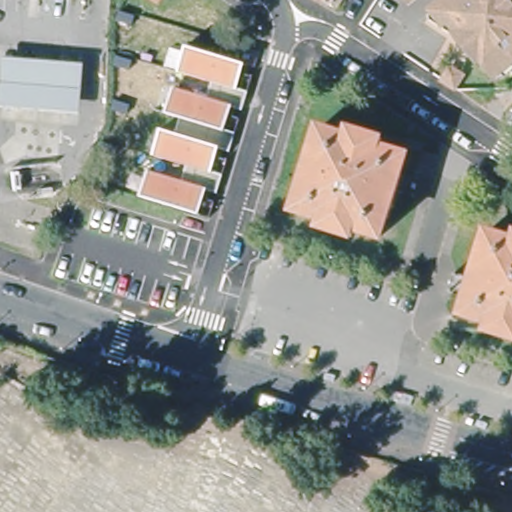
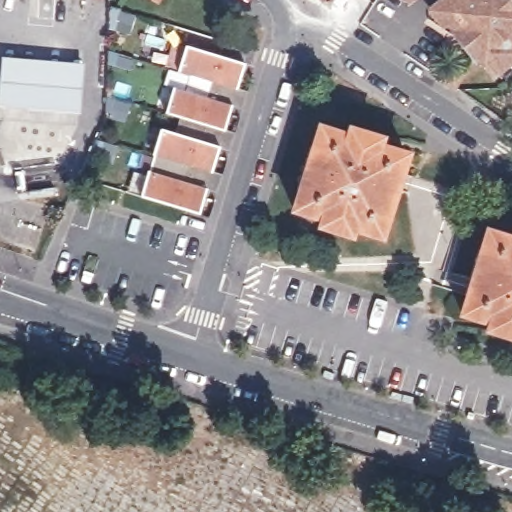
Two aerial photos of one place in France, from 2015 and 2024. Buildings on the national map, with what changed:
unchanged [(323,0),(330,0),(328,3),(323,0)]
unchanged [(403,0),(416,0),(408,6),(403,0)]
unchanged [(471,51),(467,54),(455,40),(459,37),(438,12),(452,0),(512,0),(512,59),(492,76),(471,51)]
unchanged [(246,60),(241,86),(245,90),(213,194),(207,192),(200,215),(140,195),(148,169),(180,180),(186,165),(151,155),(160,126),(174,131),(179,117),(164,112),(172,86),(208,97),(212,82),(177,72),(185,44),(246,60)]
unchanged [(0,104),(0,76),(2,55),(83,62),(79,112),(0,104)]
unchanged [(512,112),(512,126),(505,122),(512,112)]
unchanged [(354,134),(372,137),(370,147),(397,155),(371,236),(344,227),(341,236),(339,234),(330,230),(320,227),(311,226),(313,217),(285,207),(311,127),(339,136),(342,127),(354,134)]
unchanged [(501,327),(491,323),(481,322),(483,313),(456,305),(482,224),(510,232),(512,228),(512,330),(511,332),(501,327)]

